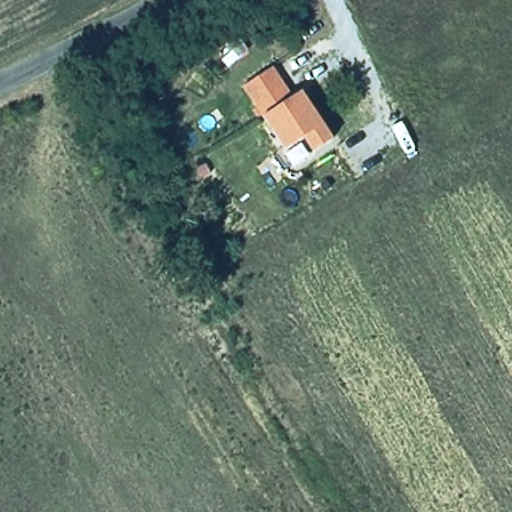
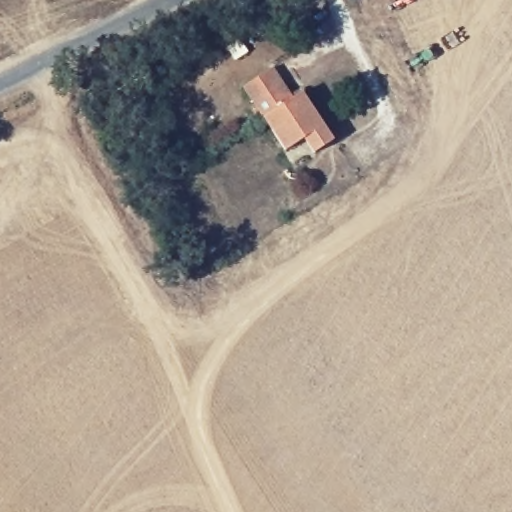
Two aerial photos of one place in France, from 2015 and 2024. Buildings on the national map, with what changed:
unchanged [(269,67),(289,96),(298,90),(330,139),(312,151),(302,137),(283,149),(240,85),(269,67)]

